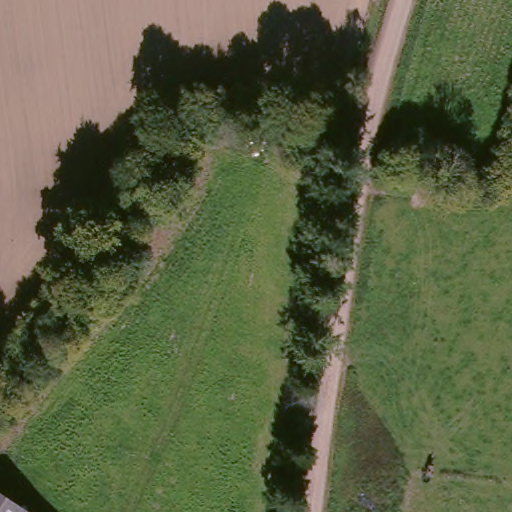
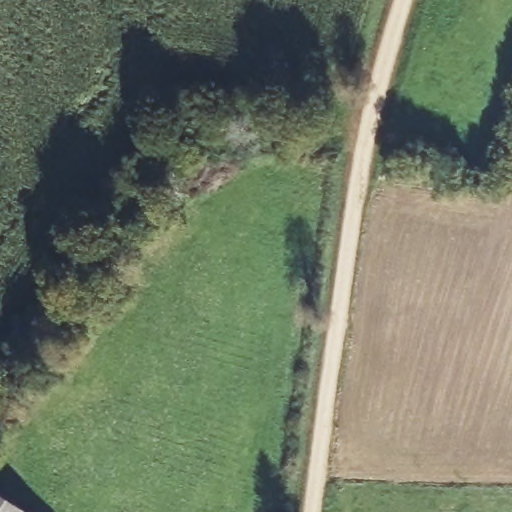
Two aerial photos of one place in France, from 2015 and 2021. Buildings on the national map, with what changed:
unchanged [(0,491),(27,512),(0,512),(0,491)]

